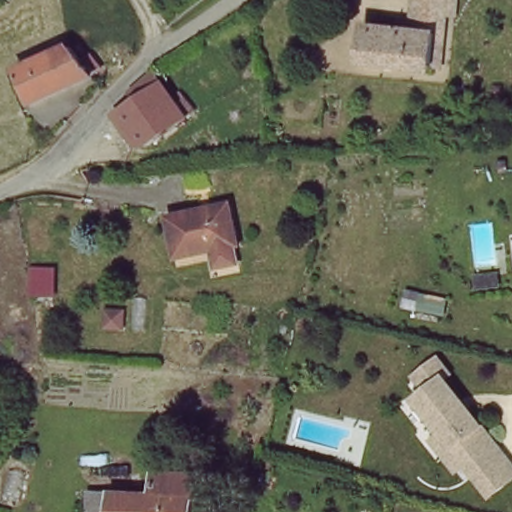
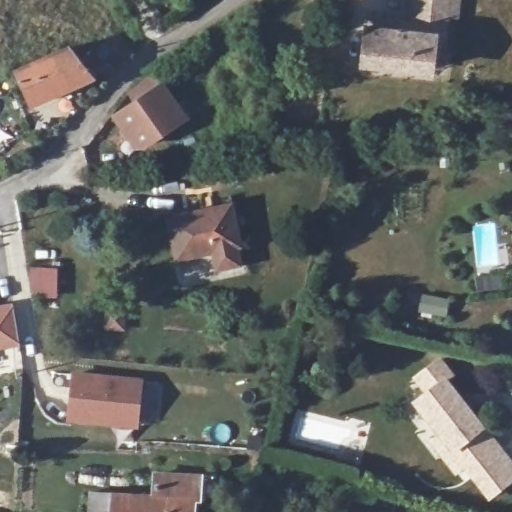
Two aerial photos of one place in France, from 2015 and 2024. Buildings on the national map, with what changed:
unchanged [(397,27),(398,17),(413,18),(415,0),(456,0),(454,15),(445,14),(443,32),(397,27)]
unchanged [(432,65),(366,57),(368,22),(397,27),(443,32),(443,40),(440,67),(432,65)]
unchanged [(92,74),(29,101),(17,67),(74,42),(92,74)]
unchanged [(136,107),(129,100),(150,75),(169,105),(178,100),(191,118),(137,153),(113,120),(136,107)]
unchanged [(232,212),(242,250),(246,271),(226,275),(223,254),(181,264),(170,227),(232,212)]
new [(17,345),(0,348),(0,304),(10,302),(17,345)]
unchanged [(413,399),(424,390),(413,376),(435,357),(448,372),(442,377),(512,463),(512,475),(489,493),(464,462),(455,468),(442,453),(430,438),(439,432),(413,399)]
new [(72,371),(143,377),(137,427),(67,421),(72,371)]
unchanged [(163,486),(209,487),(210,502),(198,502),(198,512),(94,512),(94,500),(163,500),(163,486)]

